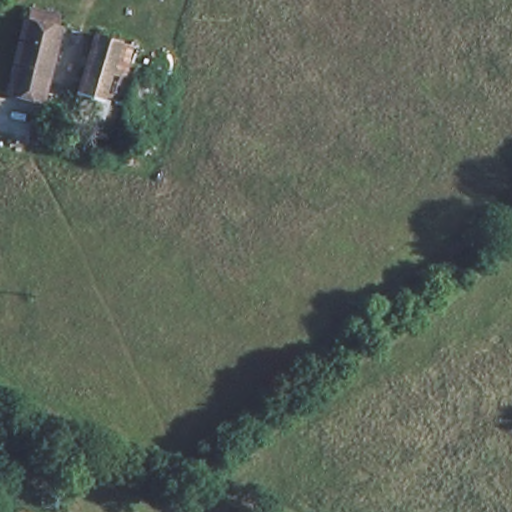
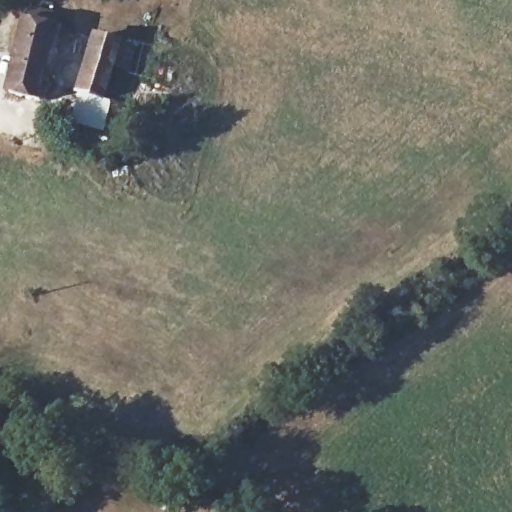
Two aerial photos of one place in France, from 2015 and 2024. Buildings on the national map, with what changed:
unchanged [(67,29),(38,96),(9,85),(39,18),(67,29)]
unchanged [(84,80),(103,37),(120,43),(134,49),(125,72),(110,67),(102,87),(84,80)]

